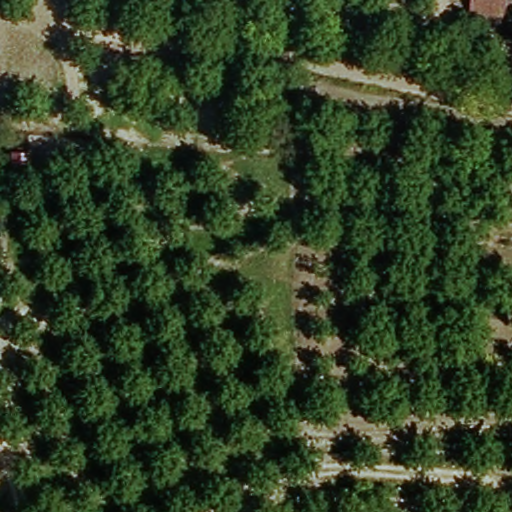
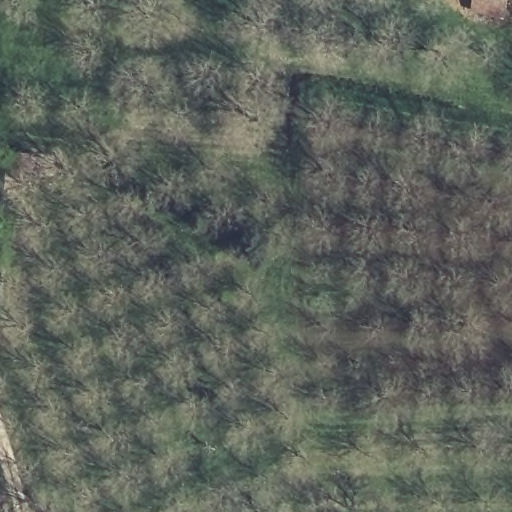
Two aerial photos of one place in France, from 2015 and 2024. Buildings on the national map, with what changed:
unchanged [(507,0),(505,12),(474,8),(476,0),(507,0)]
unchanged [(30,152),(29,177),(14,176),(14,152),(30,152)]

